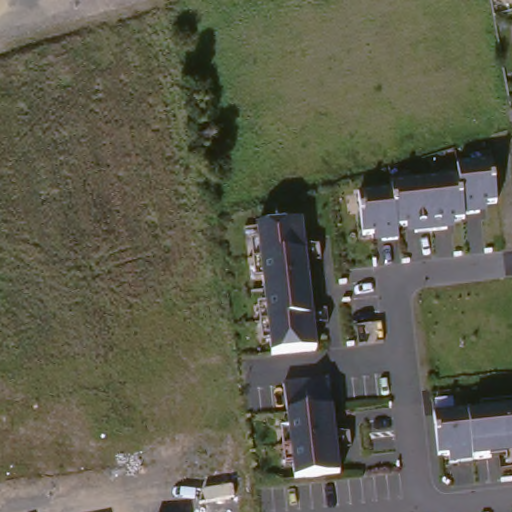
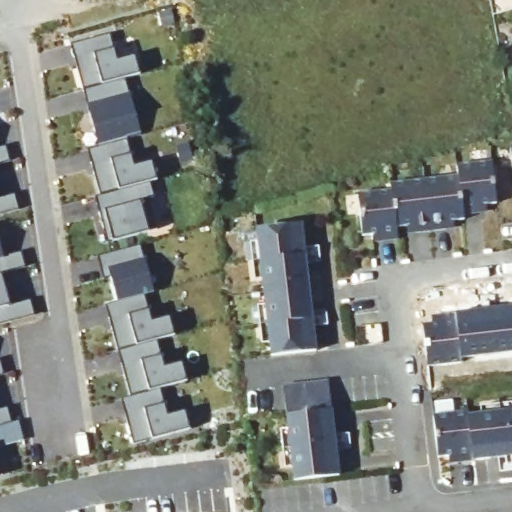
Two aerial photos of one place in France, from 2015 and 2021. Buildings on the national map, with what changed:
new [(104,211),(98,213),(93,196),(100,194),(88,149),(98,146),(86,104),(83,90),(70,45),(109,32),(113,49),(116,60),(134,55),(139,73),(126,77),(129,91),(140,132),(125,136),(130,152),(133,165),(152,160),(156,177),(148,180),(152,196),(148,197),(155,227),(148,230),(111,239),(104,211)]
new [(510,145),(512,145),(512,168),(510,145)]
new [(8,161),(0,164),(0,148),(4,147),(8,161)]
unchanged [(385,190),(384,182),(453,175),(453,164),(489,161),(496,202),(484,201),(484,212),(465,212),(466,221),(405,231),(399,237),(374,241),(374,232),(360,232),(355,192),(385,190)]
new [(18,209),(0,213),(0,196),(13,192),(18,209)]
unchanged [(299,220),(314,349),(269,357),(266,342),(258,345),(253,303),(263,302),(259,280),(253,281),(246,240),(255,240),(253,228),(299,220)]
new [(120,398),(130,396),(105,304),(115,301),(106,269),(101,271),(98,256),(141,244),(145,258),(153,290),(144,292),(149,308),(153,320),(169,315),(174,332),(157,337),(161,354),(164,366),(181,361),(186,379),(160,386),(164,402),(168,413),(184,409),(189,427),(153,437),(133,442),(120,398)]
new [(20,253),(24,267),(1,273),(9,304),(29,299),(33,316),(0,324),(0,248),(3,257),(20,253)]
new [(0,374),(0,368),(1,374),(0,374)]
unchanged [(281,385),(326,381),(329,413),(279,420),(281,385)]
new [(10,422),(0,426),(0,408),(7,406),(10,422)]
unchanged [(471,465),(470,456),(432,460),(426,420),(512,411),(512,461),(471,465)]
unchanged [(338,479),(289,485),(279,420),(329,413),(338,479)]
new [(0,475),(0,469),(1,475),(0,475)]

